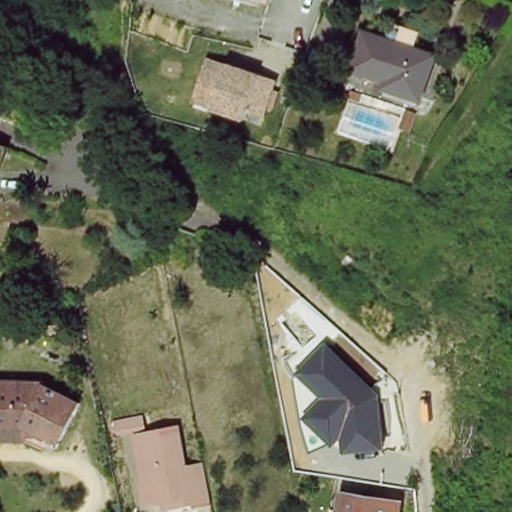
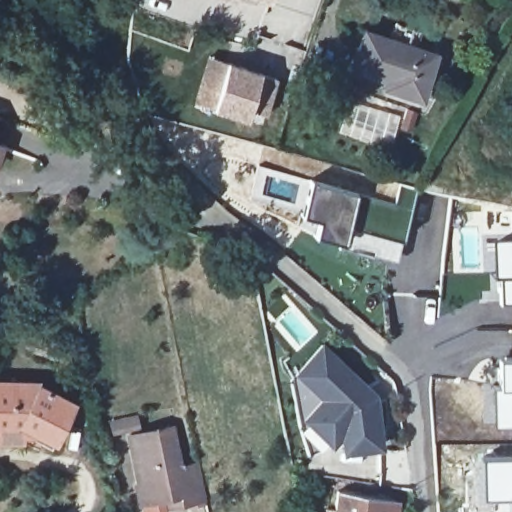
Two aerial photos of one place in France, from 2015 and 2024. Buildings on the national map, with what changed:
unchanged [(264,0),(272,0),(272,3),(264,0)]
unchanged [(421,99),(385,86),(387,79),(354,67),(366,30),(393,39),(399,22),(422,30),(416,48),(436,54),(421,99)]
unchanged [(246,69),(259,74),(277,79),(264,115),(248,109),(244,119),(212,107),(227,63),(246,69)]
unchanged [(1,108),(0,109),(0,107),(1,108)]
unchanged [(1,161),(0,161),(0,140),(8,143),(1,161)]
new [(309,176),(356,190),(341,245),(294,228),(309,176)]
new [(356,190),(390,200),(396,182),(419,189),(395,263),(341,245),(356,190)]
new [(497,274),(492,275),(492,236),(512,236),(512,301),(499,302),(497,274)]
unchanged [(325,343),(380,399),(386,451),(345,456),(343,439),(335,449),(303,420),(322,401),(295,374),(325,343)]
new [(499,388),(500,359),(512,359),(512,423),(492,424),(490,386),(499,388)]
unchanged [(0,430),(0,372),(52,374),(90,393),(70,433),(67,439),(40,425),(43,419),(35,416),(34,418),(34,431),(0,430)]
unchanged [(117,421),(142,416),(144,426),(119,431),(117,421)]
unchanged [(167,499),(148,503),(135,437),(177,428),(185,468),(204,464),(212,501),(192,505),(169,509),(167,499)]
new [(494,463),(512,463),(512,512),(494,512),(494,463)]
unchanged [(340,494),(397,503),(395,512),(336,512),(340,494)]

